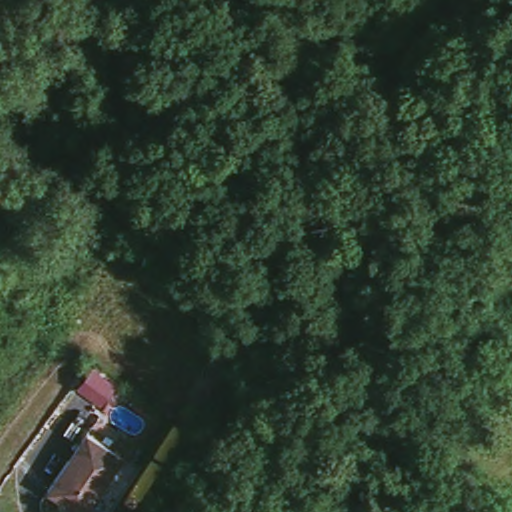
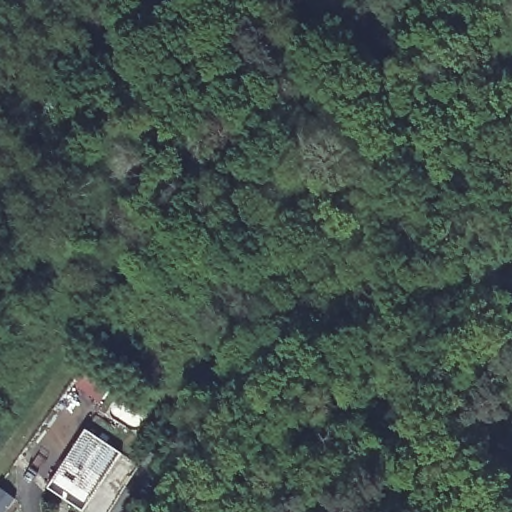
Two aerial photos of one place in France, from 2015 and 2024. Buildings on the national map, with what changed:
unchanged [(105,483),(115,495),(102,512),(74,512),(45,492),(87,430),(121,457),(105,483)]

